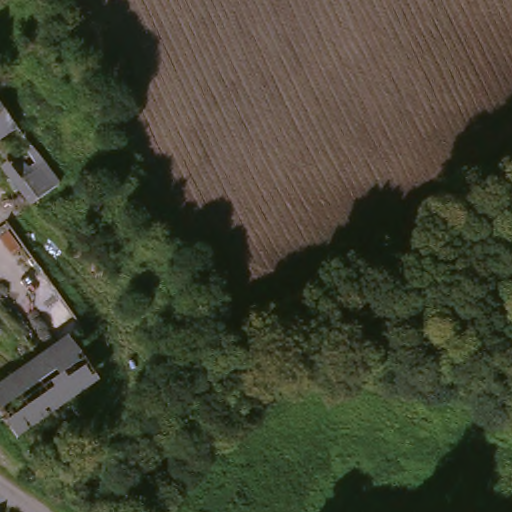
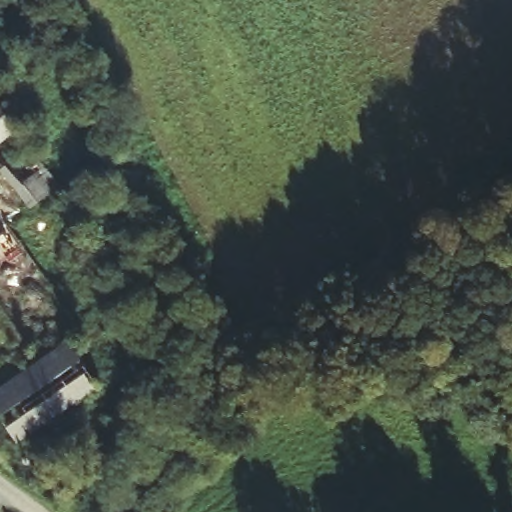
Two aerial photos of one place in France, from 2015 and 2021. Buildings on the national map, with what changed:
unchanged [(54,190),(25,214),(0,182),(0,115),(13,135),(54,190)]
unchanged [(0,389),(61,345),(94,389),(13,445),(0,428),(0,389)]

